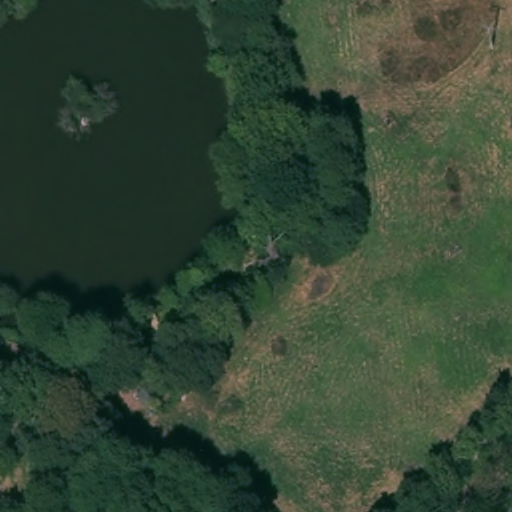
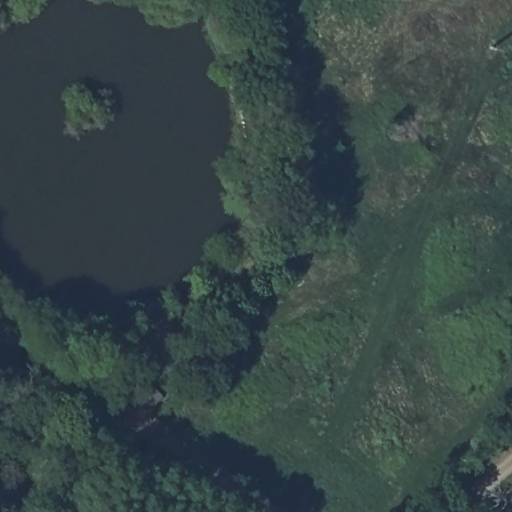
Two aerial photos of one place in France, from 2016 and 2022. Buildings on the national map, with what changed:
unchanged [(179,374),(168,391),(155,383),(165,366),(179,374)]

